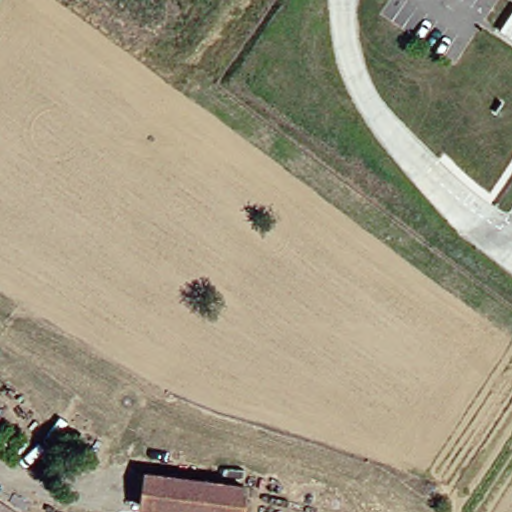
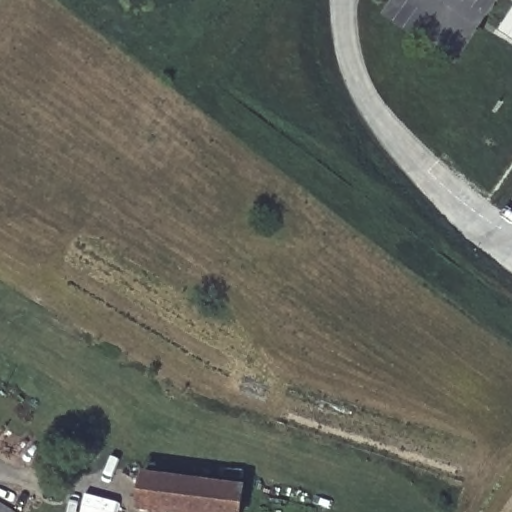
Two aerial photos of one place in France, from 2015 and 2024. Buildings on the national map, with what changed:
unchanged [(512,18),(512,33),(504,28),(512,18)]
unchanged [(235,512),(195,512),(135,505),(137,473),(238,486),(235,512)]

